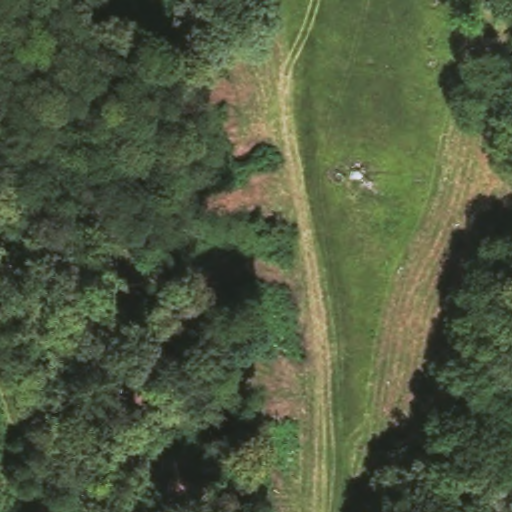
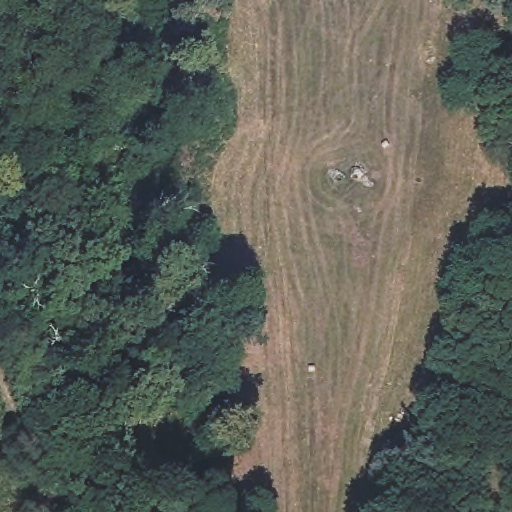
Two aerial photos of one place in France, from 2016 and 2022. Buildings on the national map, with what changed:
unchanged [(16,275),(6,280),(0,270),(0,255),(6,255),(16,275)]

